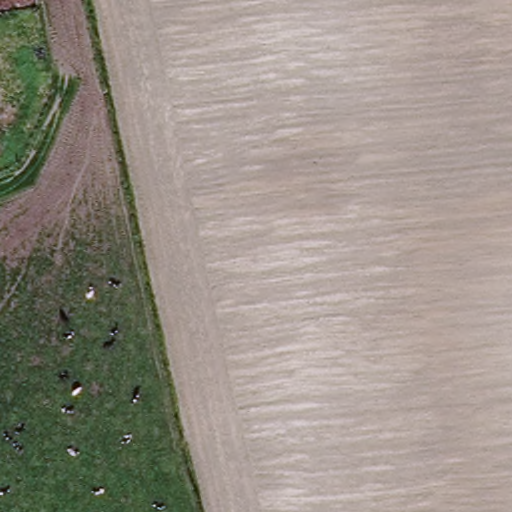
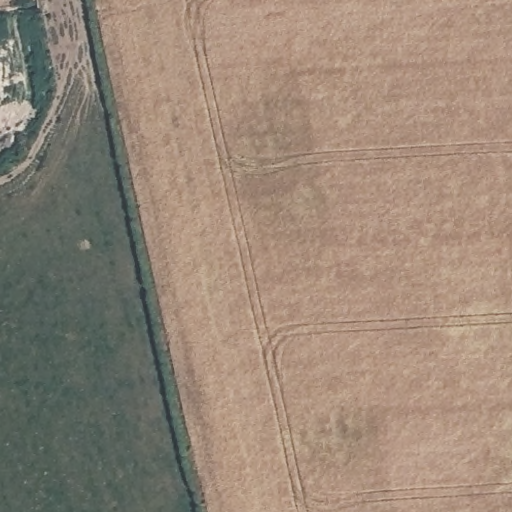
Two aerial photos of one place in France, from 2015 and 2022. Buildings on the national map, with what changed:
[]

